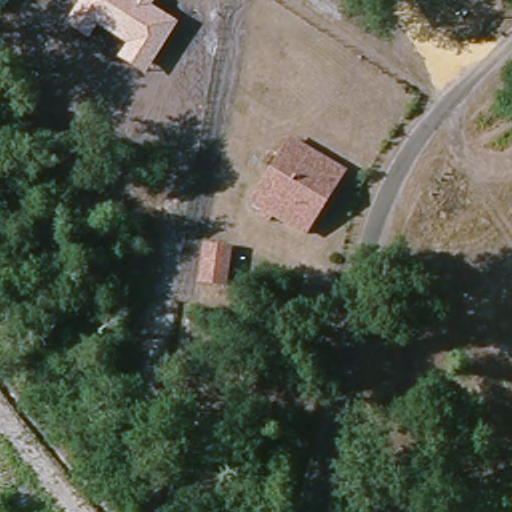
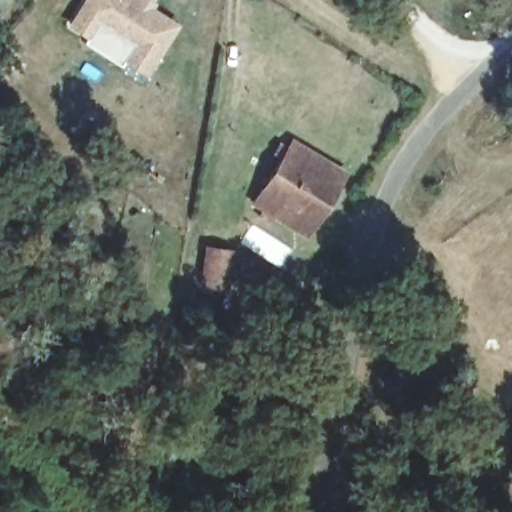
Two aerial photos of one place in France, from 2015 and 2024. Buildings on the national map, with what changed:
unchanged [(152,9),(179,24),(145,77),(117,60),(125,45),(98,27),(89,41),(66,24),(80,0),(150,0),(156,4),(152,9)]
unchanged [(343,175),(307,230),(258,200),(296,147),(343,175)]
unchanged [(232,249),(227,288),(197,284),(202,243),(232,249)]

